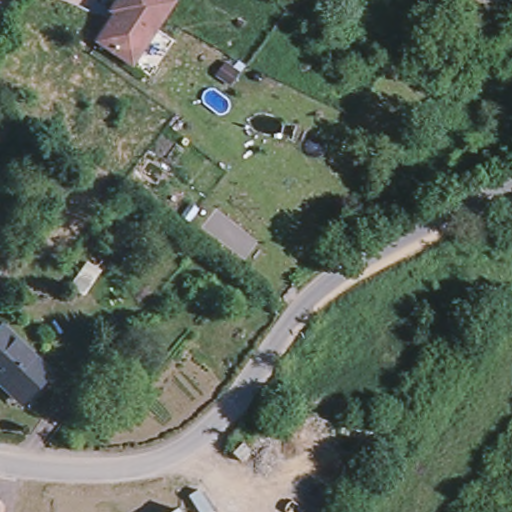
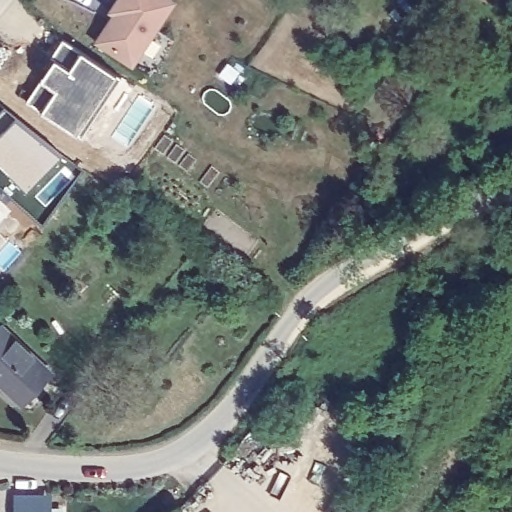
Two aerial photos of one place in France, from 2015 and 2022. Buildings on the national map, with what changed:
unchanged [(130,61),(110,48),(93,36),(117,0),(171,0),(130,61)]
new [(117,81),(80,141),(27,105),(57,65),(52,62),(63,43),(117,81)]
new [(56,148),(62,152),(27,189),(0,164),(0,108),(3,105),(56,148)]
new [(2,197),(0,200),(0,195),(2,197)]
unchanged [(20,403),(15,397),(0,383),(0,327),(2,325),(3,327),(42,363),(45,366),(51,372),(20,403)]
new [(50,495),(50,509),(64,508),(64,512),(12,512),(12,496),(50,495)]
unchanged [(182,512),(174,512),(180,508),(182,512)]

